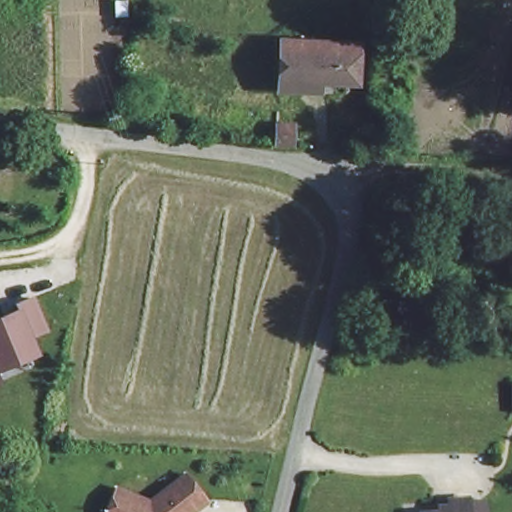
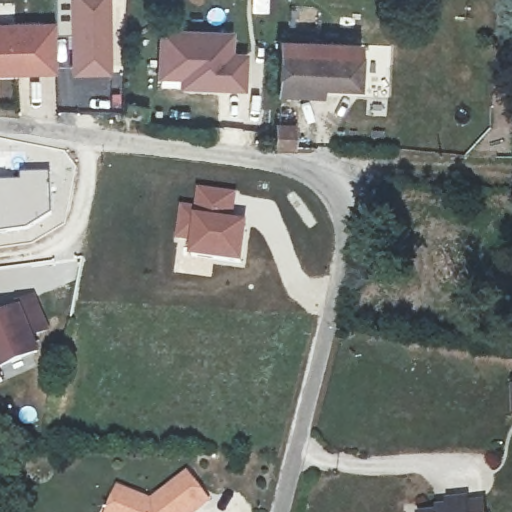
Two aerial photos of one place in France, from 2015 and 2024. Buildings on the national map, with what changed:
new [(56,34),(56,22),(55,0),(109,0),(110,74),(71,74),(71,34),(56,34)]
new [(0,74),(0,22),(56,22),(56,34),(55,72),(0,74)]
new [(193,75),(162,73),(164,29),(232,32),(231,53),(247,55),(246,88),(192,85),(184,84),(185,75),(193,75)]
unchanged [(282,90),(282,78),(282,36),(362,42),(361,80),(328,79),(329,91),(282,90)]
unchanged [(287,142),(287,119),(310,120),(311,145),(287,142)]
new [(179,205),(195,207),(197,188),(235,192),(233,221),(247,223),(242,266),(189,260),(190,244),(173,241),(179,205)]
unchanged [(18,311),(16,305),(33,297),(46,330),(29,337),(35,352),(0,365),(0,317),(18,311)]
unchanged [(154,505),(191,478),(212,506),(203,512),(111,512),(121,490),(154,505)]
unchanged [(464,512),(434,512),(447,511),(445,501),(462,500),(464,512)]

